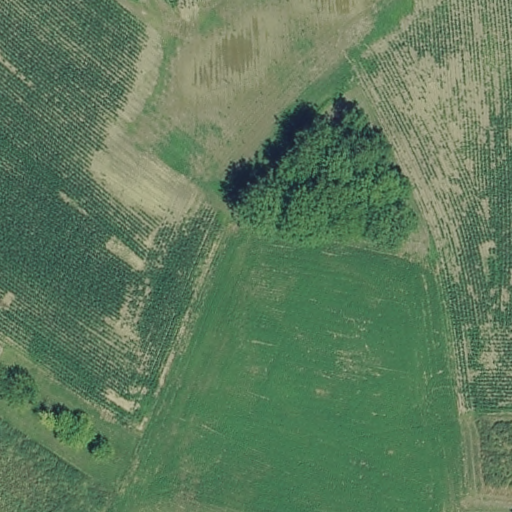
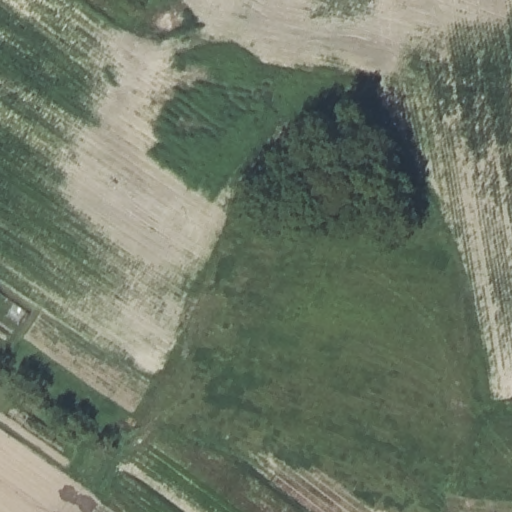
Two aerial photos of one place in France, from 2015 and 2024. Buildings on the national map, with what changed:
[]

